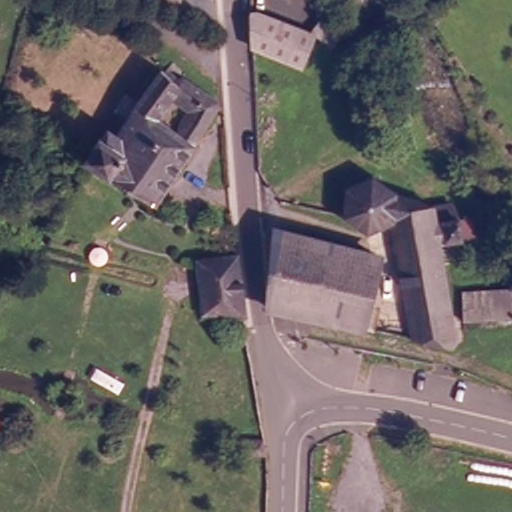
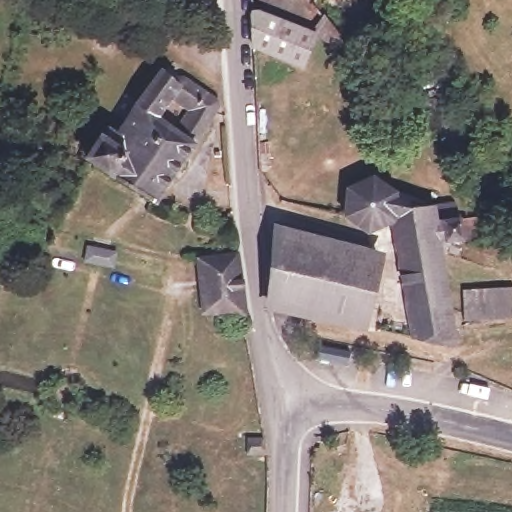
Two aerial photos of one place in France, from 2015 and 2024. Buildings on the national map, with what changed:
unchanged [(152,2),(153,0),(182,0),(178,11),(152,2)]
unchanged [(250,53),(248,16),(309,39),(316,17),(334,41),(330,51),(314,41),(301,72),(250,53)]
unchanged [(156,78),(177,91),(169,104),(154,127),(131,115),(156,78)]
unchanged [(84,167),(105,138),(112,142),(131,115),(154,127),(175,140),(191,118),(169,104),(177,91),(181,86),(212,106),(214,116),(156,211),(84,167)]
unchanged [(443,250),(456,344),(453,351),(413,345),(388,227),(364,237),(340,220),(344,191),(370,180),(393,197),(431,208),(434,225),(448,223),(453,232),(475,225),(475,235),(474,237),(455,240),(445,246),(443,250)]
unchanged [(273,308),(280,229),(377,253),(382,261),(368,329),(273,308)]
unchanged [(202,318),(194,265),(233,260),(243,321),(202,318)]
unchanged [(471,327),(463,297),(512,289),(512,294),(512,324),(471,327)]

